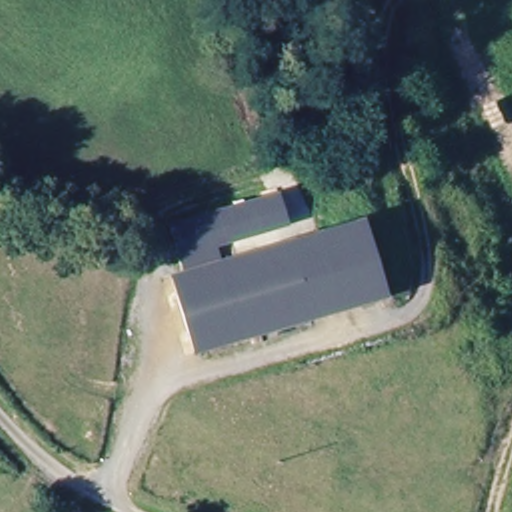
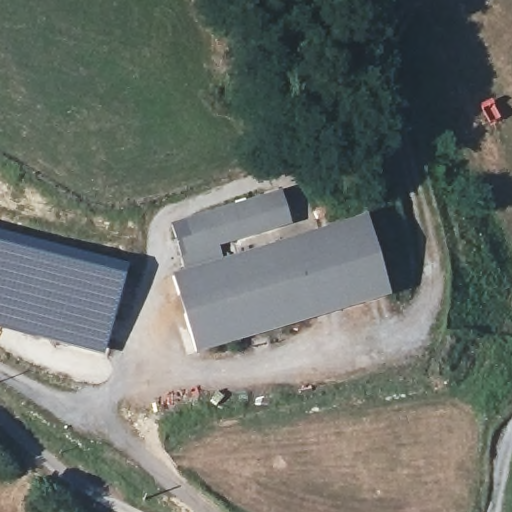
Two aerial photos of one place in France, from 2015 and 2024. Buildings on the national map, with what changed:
unchanged [(184,272),(171,227),(281,193),(291,227),(218,247),(222,260),(364,220),(390,300),(194,355),(171,277),(184,272)]
new [(105,358),(0,331),(0,233),(128,267),(105,358)]

